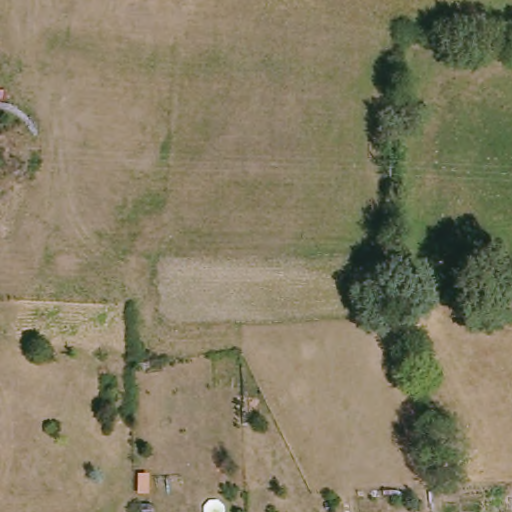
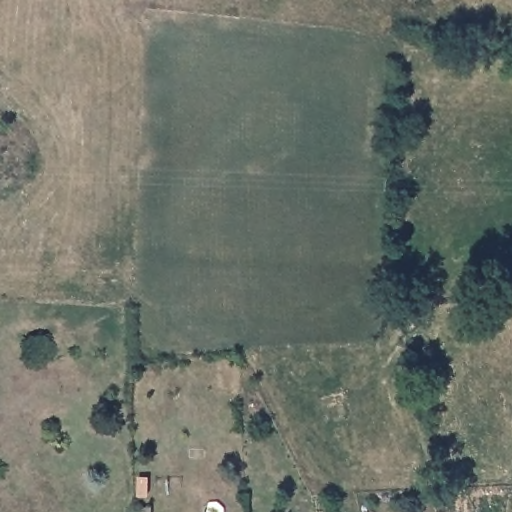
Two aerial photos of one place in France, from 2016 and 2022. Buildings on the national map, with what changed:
[]

